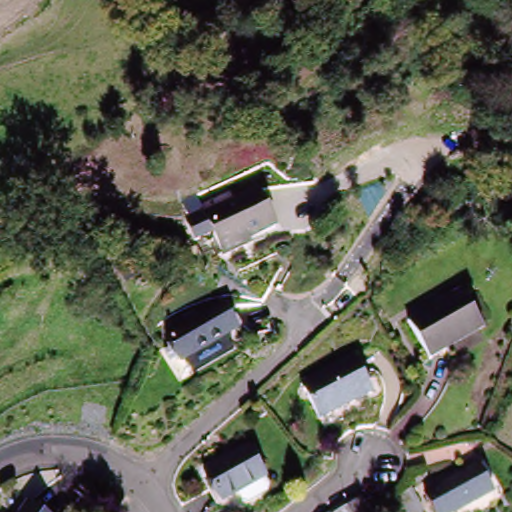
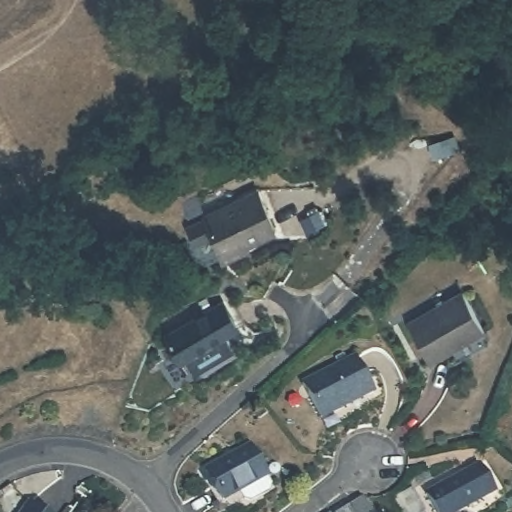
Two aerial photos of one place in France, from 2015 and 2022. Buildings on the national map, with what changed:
unchanged [(202,218),(254,194),(273,234),(222,259),(202,218)]
unchanged [(425,362),(405,321),(460,294),(479,336),(425,362)]
unchanged [(174,362),(161,338),(215,310),(227,333),(174,362)]
unchanged [(320,425),(301,387),(353,360),(373,397),(320,425)]
unchanged [(268,493),(250,502),(243,501),(238,491),(222,500),(205,466),(249,443),(266,477),(265,477),(271,487),(268,493)]
unchanged [(480,466),(495,493),(460,512),(437,512),(428,493),(480,466)]
unchanged [(361,501),(370,512),(348,512),(351,509),(361,501)]
unchanged [(42,512),(23,512),(30,503),(42,512)]

